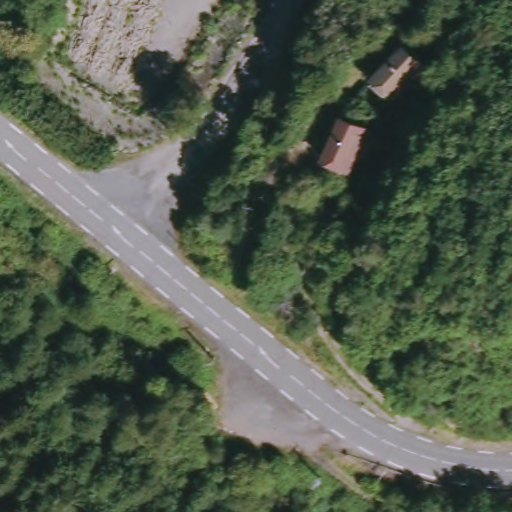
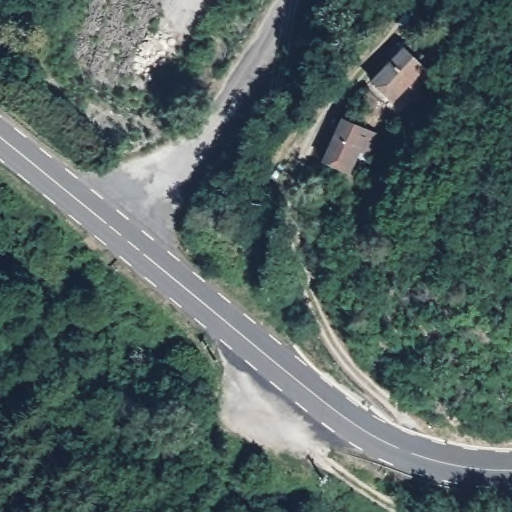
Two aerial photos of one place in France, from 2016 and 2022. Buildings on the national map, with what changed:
unchanged [(439,70),(420,86),(412,79),(397,94),(377,76),(407,42),(439,70)]
unchanged [(352,115),(376,128),(347,173),(327,161),(352,115)]

